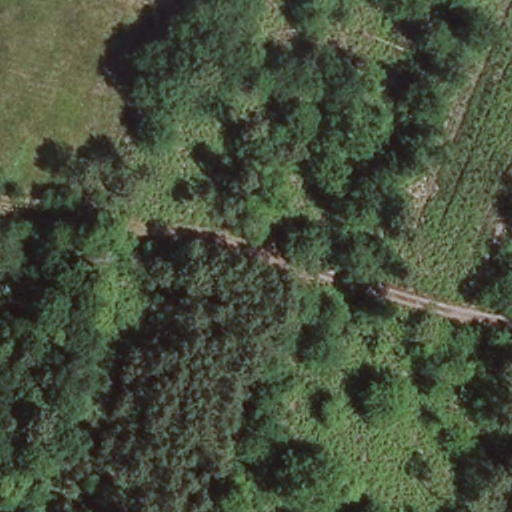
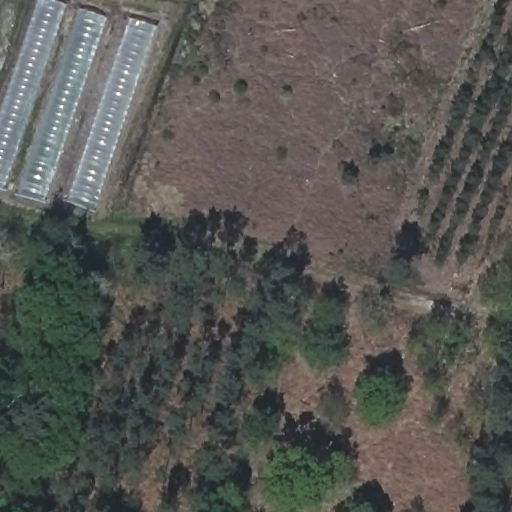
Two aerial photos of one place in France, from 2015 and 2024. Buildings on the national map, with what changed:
new [(49,0),(65,5),(4,190),(0,189),(0,123),(41,0),(49,0)]
new [(81,10),(104,17),(43,202),(18,196),(81,10)]
new [(134,19),(154,25),(92,210),(70,203),(134,19)]

